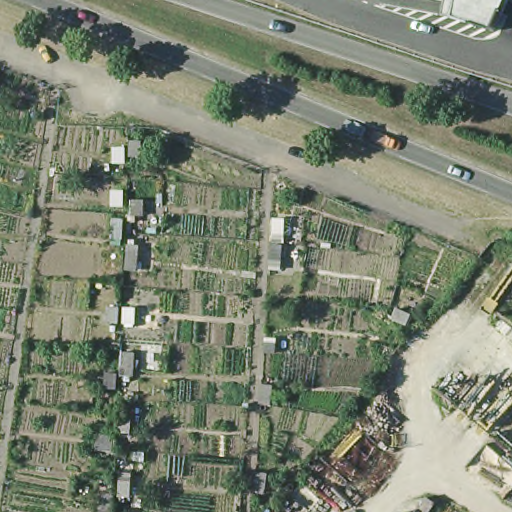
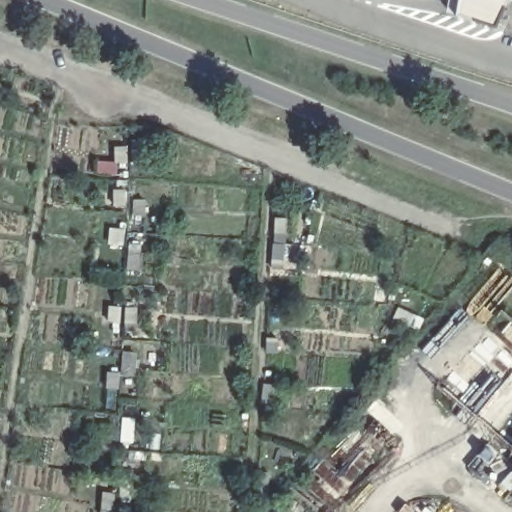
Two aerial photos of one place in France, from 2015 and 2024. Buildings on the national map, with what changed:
unchanged [(457,16),(446,15),(449,0),(509,0),(495,31),(457,16)]

